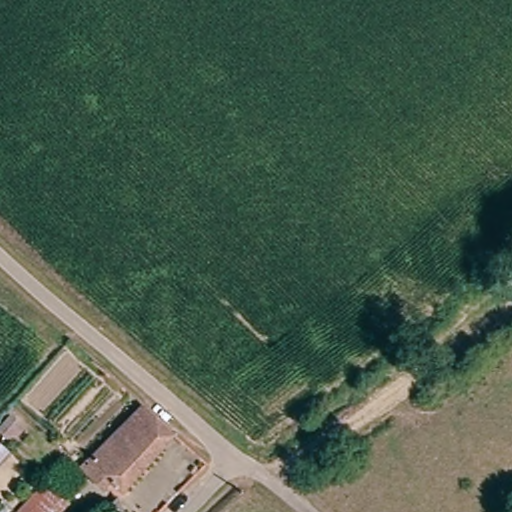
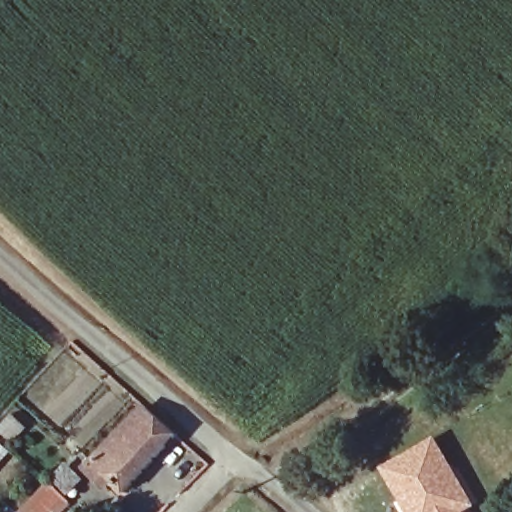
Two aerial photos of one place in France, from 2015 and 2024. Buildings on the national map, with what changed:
unchanged [(144,408),(174,435),(124,488),(113,477),(105,485),(84,466),(141,406),(144,408)]
unchanged [(9,442),(0,433),(0,424),(9,415),(23,428),(9,442)]
new [(458,469),(477,503),(461,512),(401,512),(396,503),(401,500),(384,468),(436,440),(453,472),(458,469)]
unchanged [(0,459),(0,450),(4,453),(0,459)]
unchanged [(58,512),(18,512),(45,483),(66,503),(58,512)]
unchanged [(106,512),(114,504),(122,512),(106,512)]

